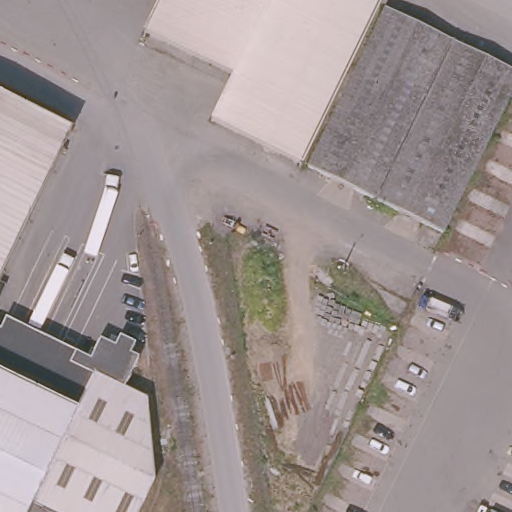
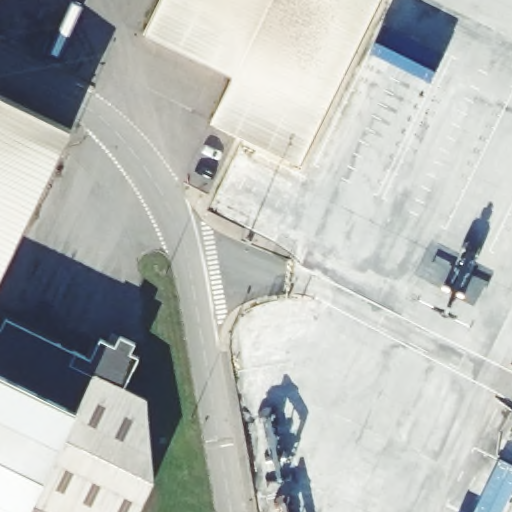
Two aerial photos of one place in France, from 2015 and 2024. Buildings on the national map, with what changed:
unchanged [(378,0),(376,2),(354,50),(299,165),(207,121),(229,76),(139,34),(155,0),(378,0)]
demolished [(512,74),(512,86),(495,123),(442,231),(301,164),(358,51),(379,10),(512,74)]
new [(438,70),(420,106),(359,77),(376,40),(438,70)]
unchanged [(0,273),(0,96),(69,130),(0,273)]
unchanged [(99,333),(140,351),(125,386),(145,398),(155,486),(142,512),(45,512),(33,508),(31,512),(0,512),(0,317),(90,356),(99,333)]

